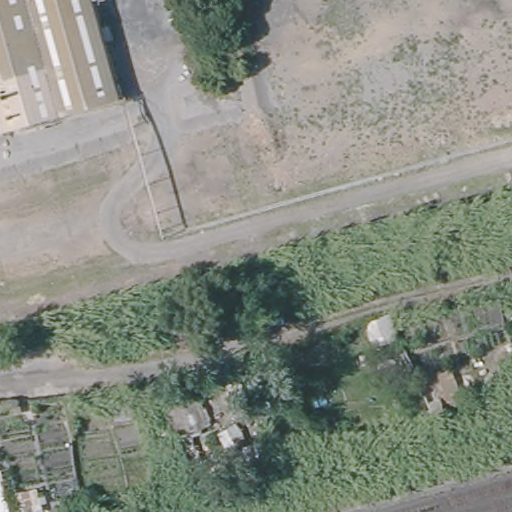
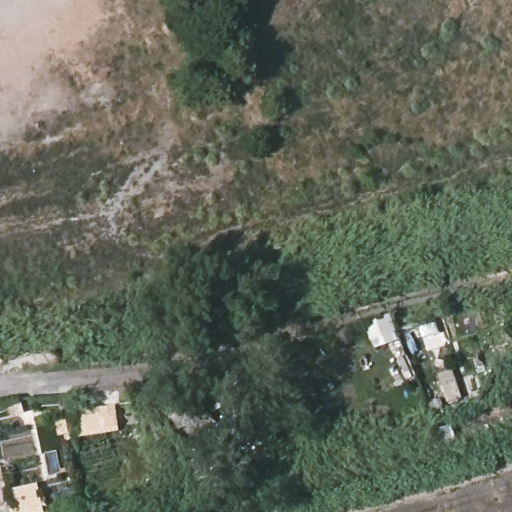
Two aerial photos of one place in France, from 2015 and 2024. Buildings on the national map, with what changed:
demolished [(110,97),(0,127),(0,0),(83,0),(110,97)]
unchanged [(395,315),(401,334),(374,346),(366,327),(395,315)]
new [(4,469),(6,491),(39,484),(44,512),(0,512),(0,470),(4,469)]

